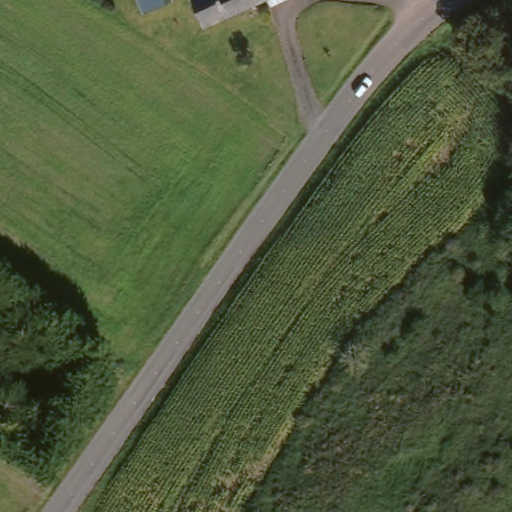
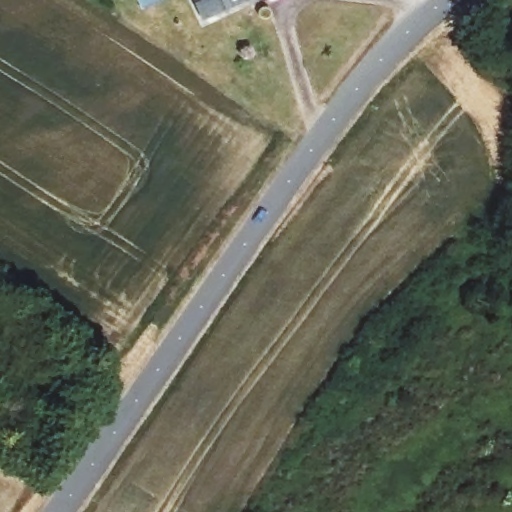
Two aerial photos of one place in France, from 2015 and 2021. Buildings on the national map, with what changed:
unchanged [(143,8),(139,0),(162,0),(143,8)]
unchanged [(202,21),(191,0),(251,0),(202,21)]

